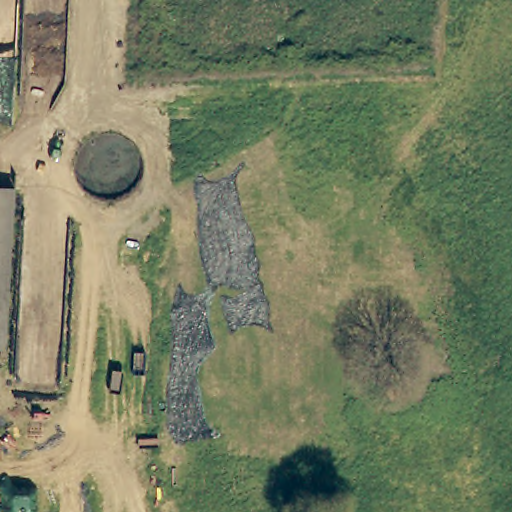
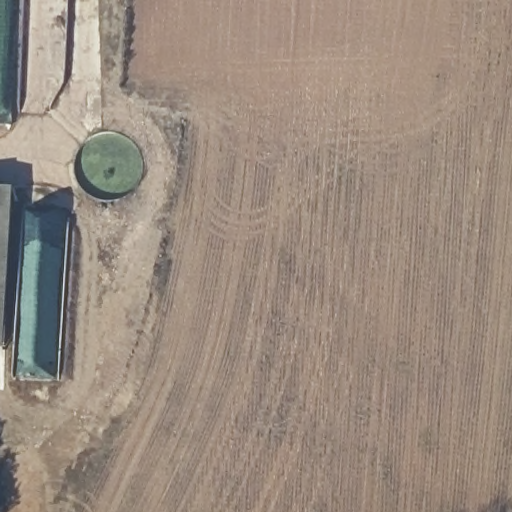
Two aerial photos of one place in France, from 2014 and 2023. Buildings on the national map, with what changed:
unchanged [(0,346),(0,186),(19,188),(8,347),(0,346)]

